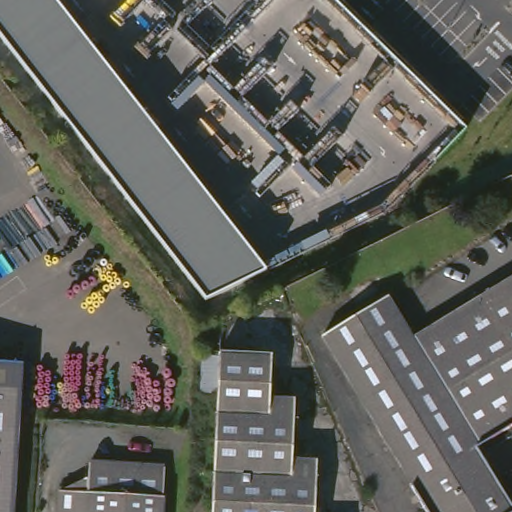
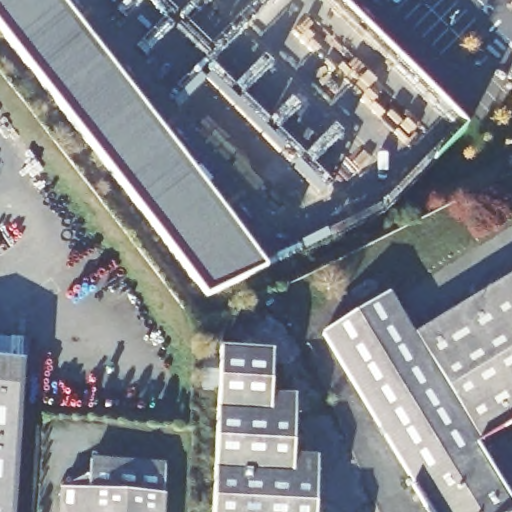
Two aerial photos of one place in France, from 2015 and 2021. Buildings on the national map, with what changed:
unchanged [(204,297),(0,34),(0,0),(54,0),(265,269),(204,297)]
unchanged [(512,424),(504,428),(437,320),(512,275),(512,424)]
unchanged [(512,492),(512,511),(510,512),(437,512),(416,479),(418,479),(328,329),(392,290),(419,331),(437,320),(504,428),(481,442),(512,492)]
unchanged [(280,349),(278,391),(305,393),(303,409),(301,452),(326,453),(324,470),(323,512),(220,512),(229,346),(280,349)]
unchanged [(30,362),(23,512),(0,512),(0,361),(30,362)]
unchanged [(174,461),(172,512),(68,512),(69,485),(98,486),(100,457),(174,461)]

